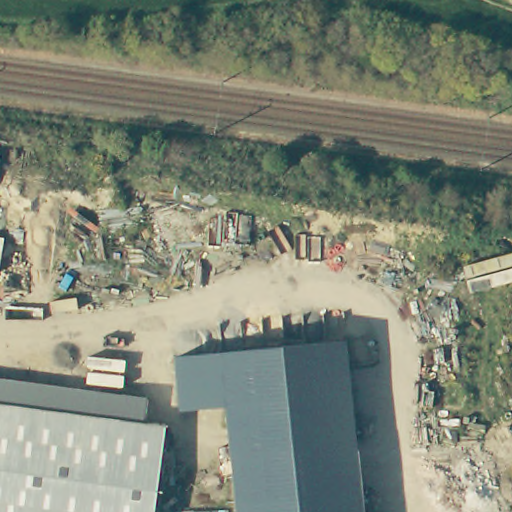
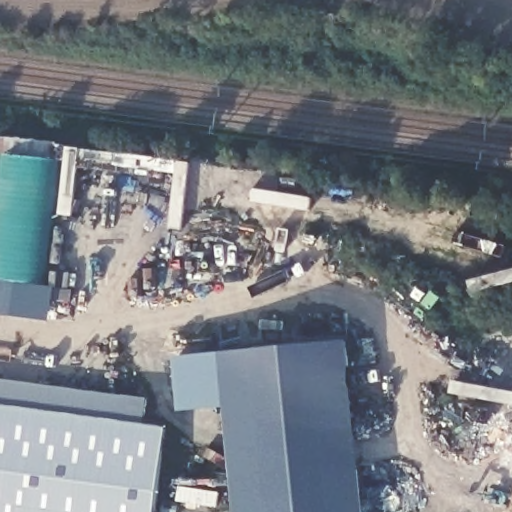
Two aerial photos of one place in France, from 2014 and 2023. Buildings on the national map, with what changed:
new [(60,159),(45,285),(0,278),(0,192),(5,152),(60,159)]
new [(56,287),(51,320),(0,313),(0,278),(45,285),(56,287)]
unchanged [(349,340),(366,512),(239,512),(227,408),(181,410),(177,356),(222,353),(349,340)]
unchanged [(0,413),(0,377),(150,399),(146,423),(167,427),(164,436),(0,413)]
unchanged [(164,436),(154,512),(0,512),(0,413),(164,436)]

